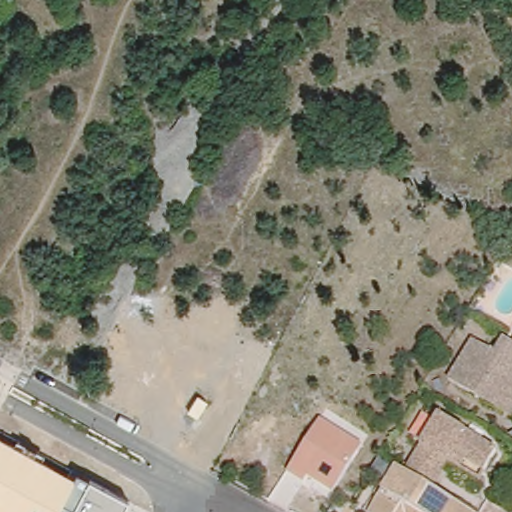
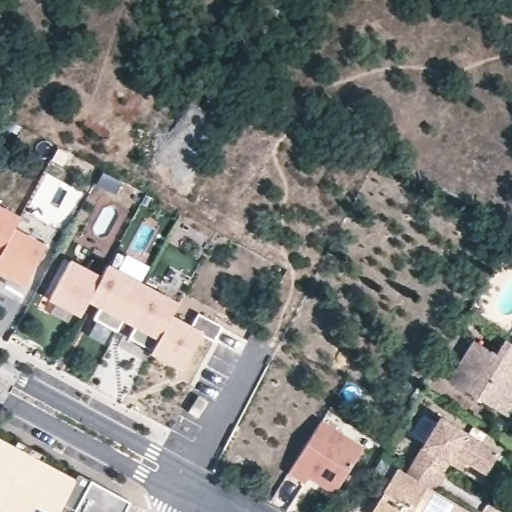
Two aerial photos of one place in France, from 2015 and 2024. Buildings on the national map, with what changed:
new [(18,218),(12,229),(45,247),(25,282),(0,268),(0,251),(0,250),(0,208),(18,218)]
new [(170,316),(151,350),(127,338),(135,323),(124,317),(116,331),(92,319),(100,304),(88,298),(80,313),(50,296),(69,260),(100,277),(106,266),(141,285),(176,304),(170,316)]
unchanged [(170,316),(190,327),(198,313),(221,325),(213,340),(201,334),(183,367),(151,350),(170,316)]
unchanged [(448,380),(472,340),(495,354),(504,339),(512,343),(512,419),(506,415),(448,380)]
unchanged [(449,464),(434,489),(405,472),(440,416),(468,433),(472,426),(486,434),(482,441),(499,451),(485,474),(480,483),(449,464)]
unchanged [(321,419),(364,447),(335,495),(308,478),(303,484),(288,473),(321,419)]
unchanged [(75,480),(80,473),(130,499),(124,512),(0,512),(0,439),(75,480)]
unchanged [(405,472),(434,489),(473,512),(370,512),(397,467),(405,472)]
unchanged [(348,512),(349,509),(355,512),(348,512)]

